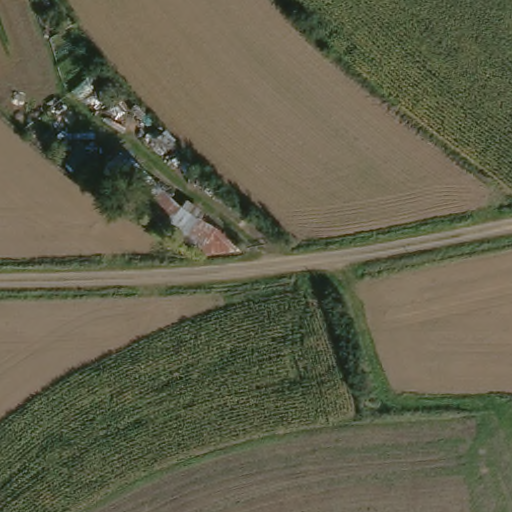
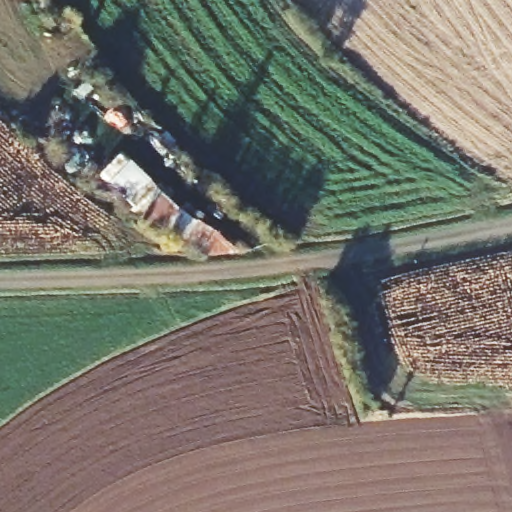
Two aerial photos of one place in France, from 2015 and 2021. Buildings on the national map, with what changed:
unchanged [(153,188),(222,239),(200,257),(138,206),(153,188)]

